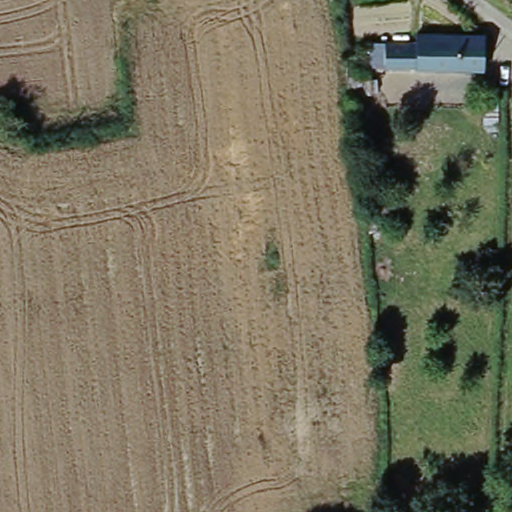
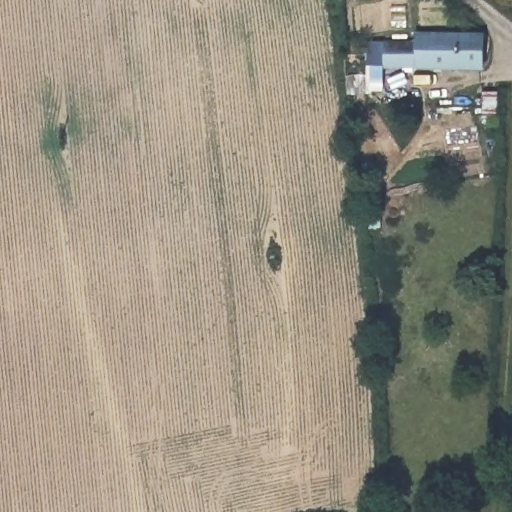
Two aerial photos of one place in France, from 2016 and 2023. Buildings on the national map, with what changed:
unchanged [(476,71),(393,79),(388,47),(473,39),(476,71)]

